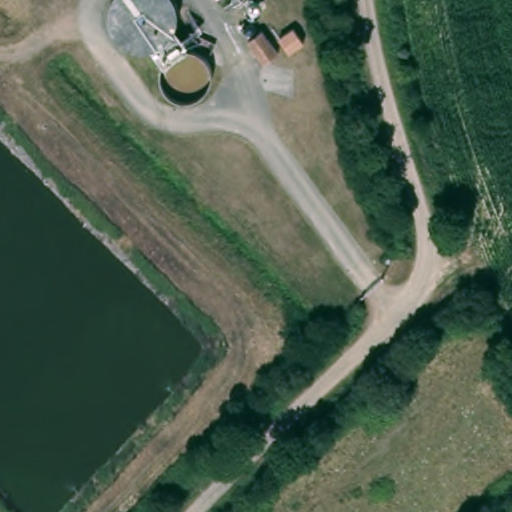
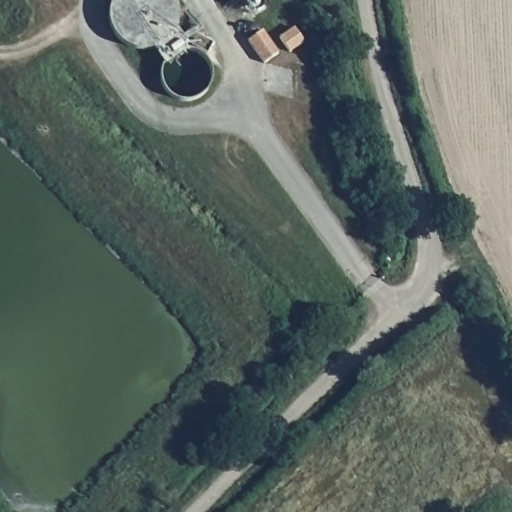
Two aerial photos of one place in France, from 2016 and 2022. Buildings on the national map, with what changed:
unchanged [(262,27),(282,52),(270,65),(250,37),(262,27)]

